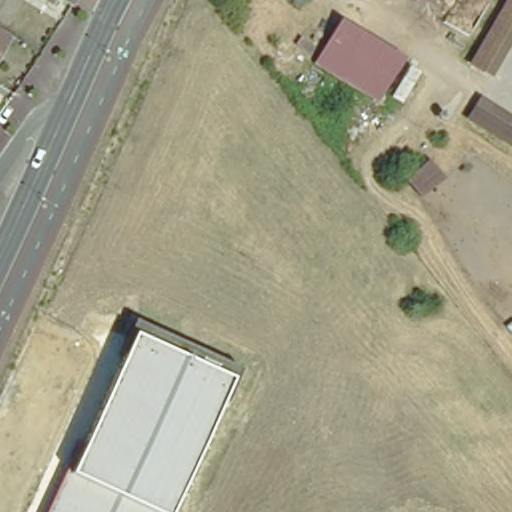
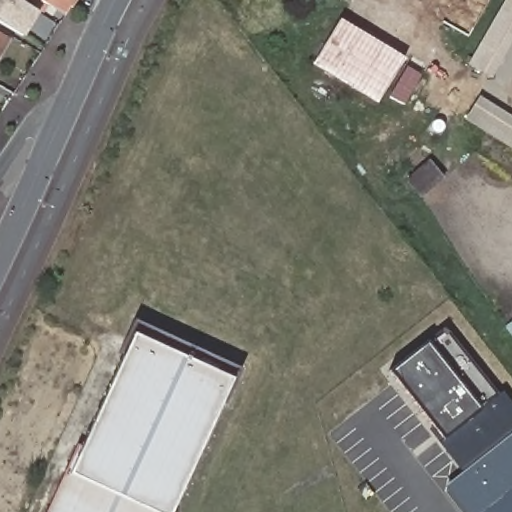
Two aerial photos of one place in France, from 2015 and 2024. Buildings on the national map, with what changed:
new [(24,36),(0,23),(0,0),(17,0),(39,12),(24,36)]
unchanged [(56,1),(49,11),(30,0),(75,0),(69,10),(56,1)]
unchanged [(507,0),(512,0),(512,22),(481,75),(468,67),(507,0)]
unchanged [(341,21),(408,60),(382,105),(315,65),(341,21)]
unchanged [(0,46),(0,30),(7,35),(0,46)]
unchanged [(478,105),(512,126),(512,143),(469,117),(478,105)]
unchanged [(429,161),(442,177),(421,194),(408,178),(429,161)]
unchanged [(137,321),(241,368),(175,512),(148,512),(66,475),(137,321)]
new [(389,371),(428,340),(446,325),(499,393),(503,390),(512,402),(512,432),(462,472),(439,443),(444,440),(389,371)]
new [(444,486),(512,434),(512,512),(464,512),(444,486)]
unchanged [(66,475),(148,512),(49,512),(66,475)]

